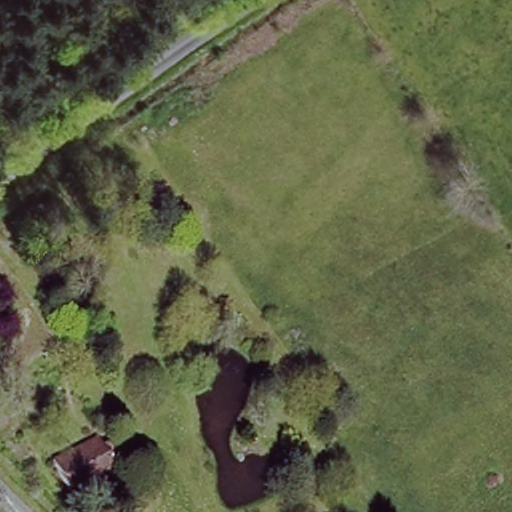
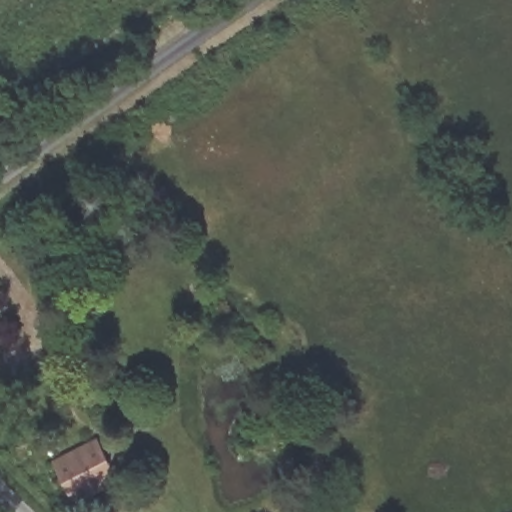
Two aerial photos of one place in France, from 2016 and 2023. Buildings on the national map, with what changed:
unchanged [(78,504),(55,462),(100,437),(121,480),(78,504)]

